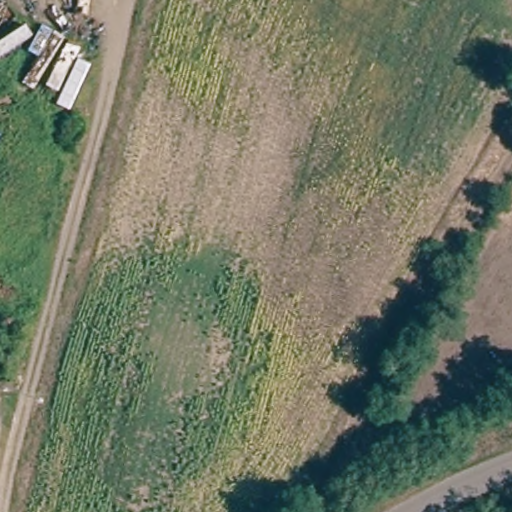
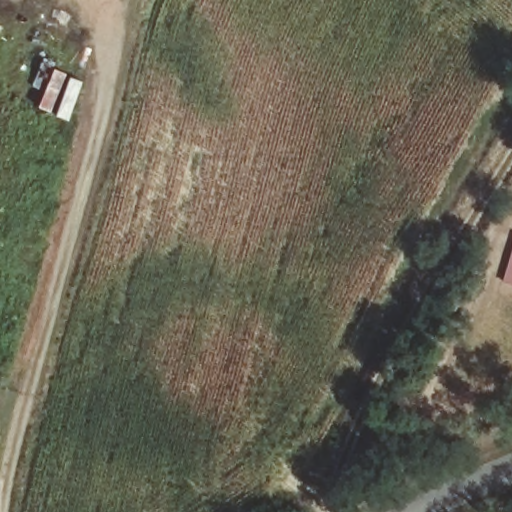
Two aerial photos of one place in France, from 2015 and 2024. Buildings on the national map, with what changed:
new [(503,282),(512,252),(512,285),(503,282)]

